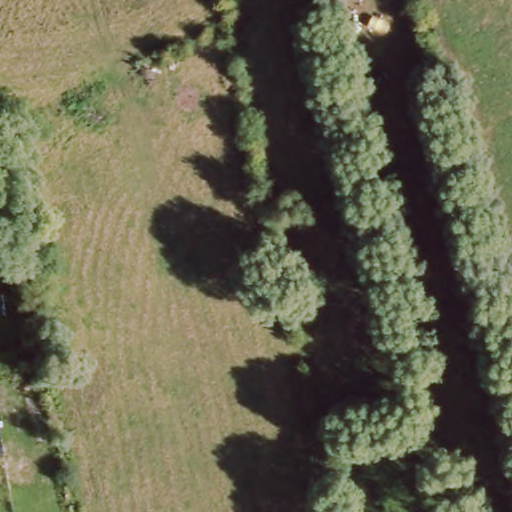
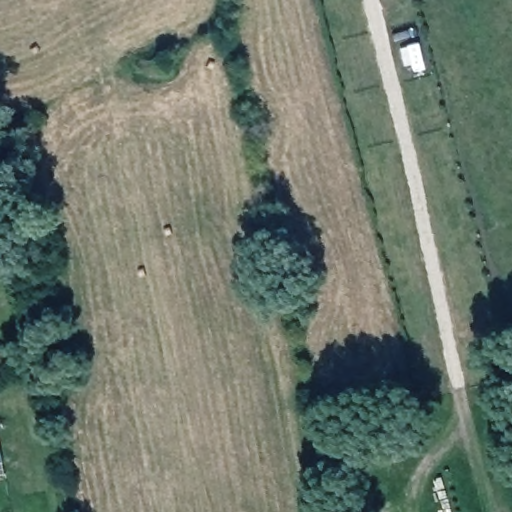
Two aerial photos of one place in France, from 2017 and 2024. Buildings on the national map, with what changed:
unchanged [(3,452),(0,453),(0,443),(3,452)]

